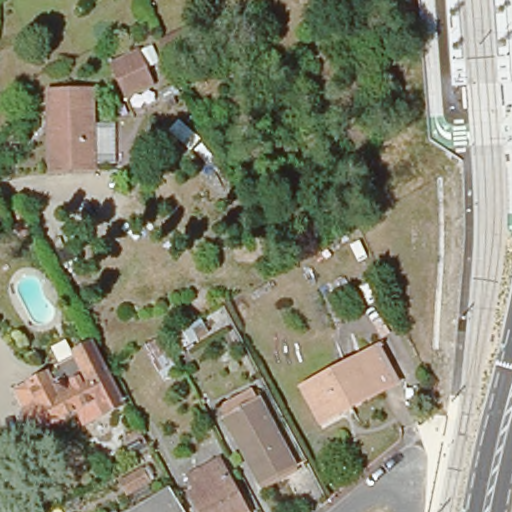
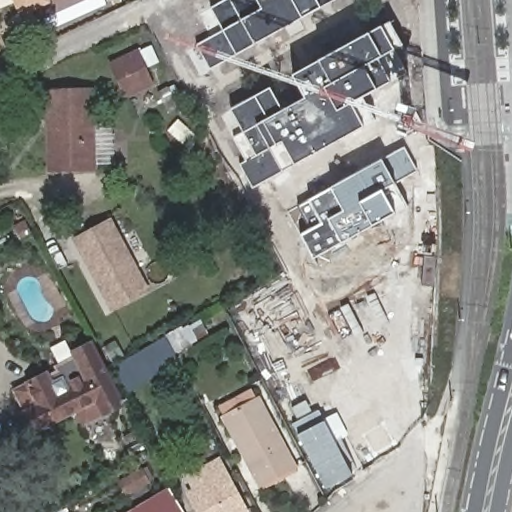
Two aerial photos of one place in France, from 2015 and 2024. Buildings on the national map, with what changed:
new [(0,10),(0,0),(49,0),(51,4),(20,17),(13,4),(0,10)]
new [(212,7),(224,0),(335,0),(322,7),(302,17),(255,44),(236,54),(211,68),(197,44),(223,29),(212,7)]
new [(246,161),(232,139),(244,133),(231,110),(254,96),(270,88),(283,110),(305,98),(292,76),(319,61),(368,34),(381,27),(391,22),(404,44),(395,49),(388,54),(400,75),(392,80),(378,89),(363,97),(375,119),(364,126),(296,164),(283,172),(253,189),(240,165),(246,161)]
unchanged [(161,42),(190,26),(199,43),(169,59),(161,42)]
unchanged [(132,50),(138,49),(150,83),(148,84),(122,93),(109,59),(132,50)]
unchanged [(86,93),(86,163),(86,172),(71,172),(43,172),(44,93),(86,93)]
new [(308,200),(331,189),(382,159),(404,148),(417,171),(395,184),(408,207),(396,213),(373,226),(342,243),(313,259),(300,234),(310,229),(298,207),(308,200)]
new [(111,314),(72,239),(112,218),(151,291),(111,314)]
unchanged [(144,352),(165,340),(170,349),(163,354),(166,359),(152,367),(144,352)]
unchanged [(51,372),(69,363),(68,361),(87,351),(118,411),(80,431),(78,425),(73,416),(27,439),(16,418),(20,415),(11,397),(53,376),(51,372)]
unchanged [(307,424),(290,392),(370,351),(390,389),(343,414),(311,431),(307,424)]
demolished [(120,362),(140,352),(152,374),(143,379),(145,382),(134,388),(120,362)]
unchanged [(224,418),(256,401),(283,451),(286,449),(296,468),(260,487),(224,418)]
new [(322,421),(353,474),(328,489),(297,436),(322,421)]
unchanged [(131,447),(126,436),(140,429),(145,439),(147,443),(133,450),(131,447)]
unchanged [(186,488),(194,484),(187,469),(216,456),(245,512),(198,512),(186,488)]
unchanged [(120,481),(143,469),(150,483),(127,494),(120,481)]
unchanged [(164,488),(180,512),(125,512),(164,488)]

